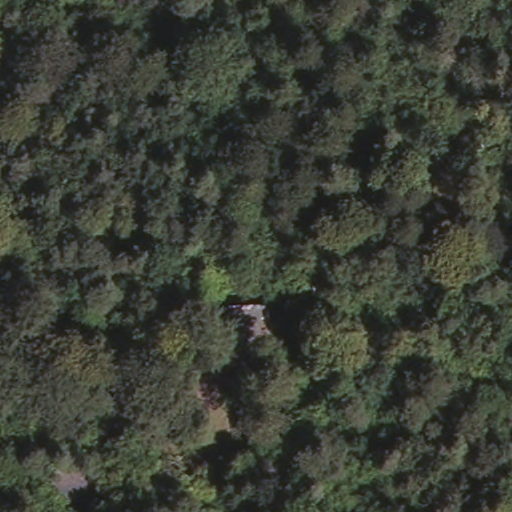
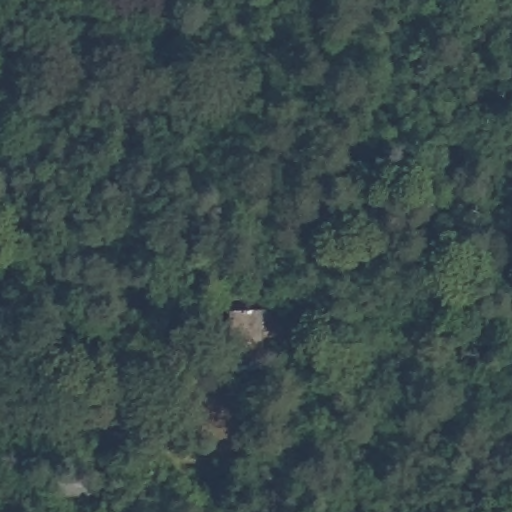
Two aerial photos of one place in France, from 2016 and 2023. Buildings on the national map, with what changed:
unchanged [(59,461),(81,471),(71,499),(49,492),(59,461)]

